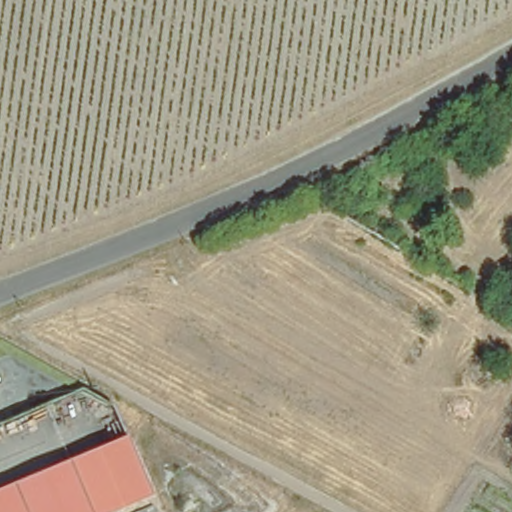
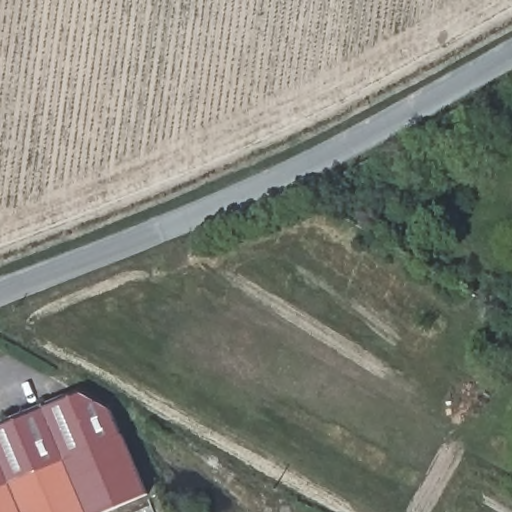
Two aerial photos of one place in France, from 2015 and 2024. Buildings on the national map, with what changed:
new [(69,461),(0,490),(0,429),(82,393),(111,410),(122,439),(69,461)]
unchanged [(111,512),(90,512),(69,461),(125,438),(149,495),(111,512)]
unchanged [(69,461),(90,512),(0,512),(0,490),(69,461)]

